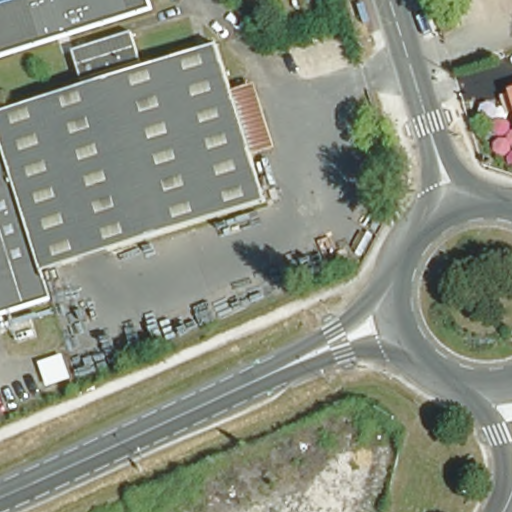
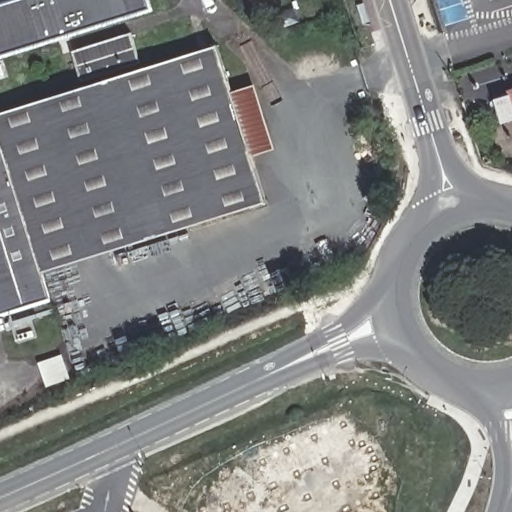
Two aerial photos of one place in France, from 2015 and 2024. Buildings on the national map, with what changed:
unchanged [(152,13),(0,62),(0,10),(31,0),(148,0),(152,13)]
unchanged [(143,68),(85,85),(77,57),(134,40),(143,68)]
unchanged [(44,276),(52,303),(0,320),(0,118),(220,50),(234,96),(254,160),(268,206),(44,276)]
unchanged [(511,78),(512,78),(512,80),(511,78)]
unchanged [(234,96),(257,88),(277,153),(254,160),(234,96)]

